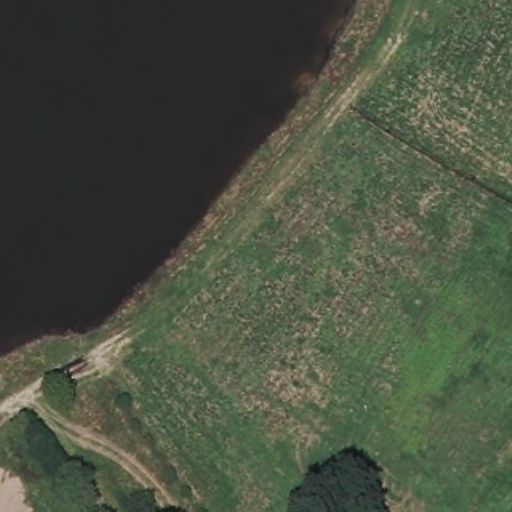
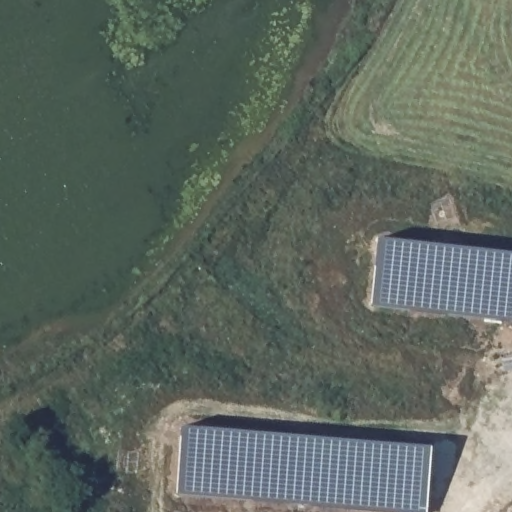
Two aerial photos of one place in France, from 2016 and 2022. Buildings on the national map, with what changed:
new [(512,252),(512,320),(372,306),(380,238),(512,252)]
new [(183,427),(433,447),(428,512),(408,512),(178,494),(183,427)]

